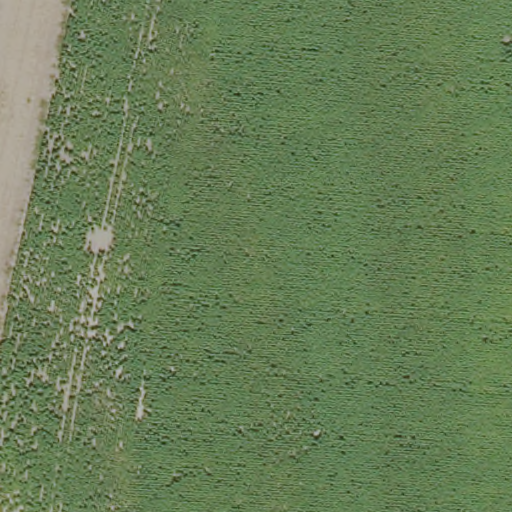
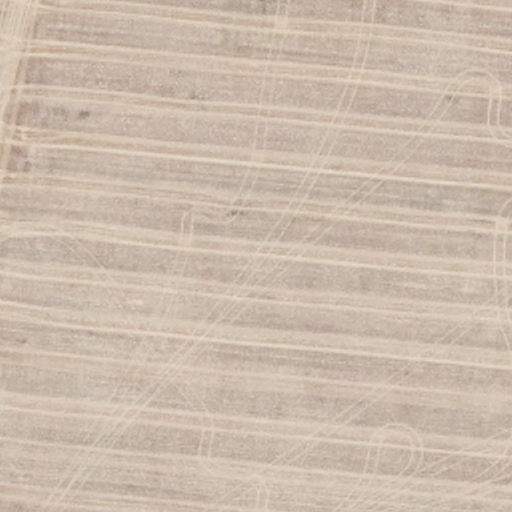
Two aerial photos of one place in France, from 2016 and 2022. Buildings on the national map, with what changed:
[]

